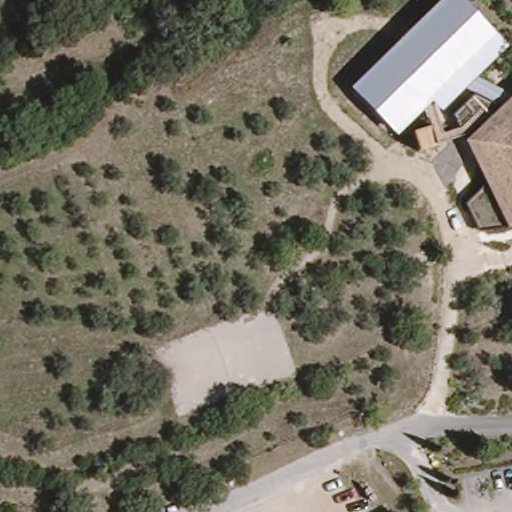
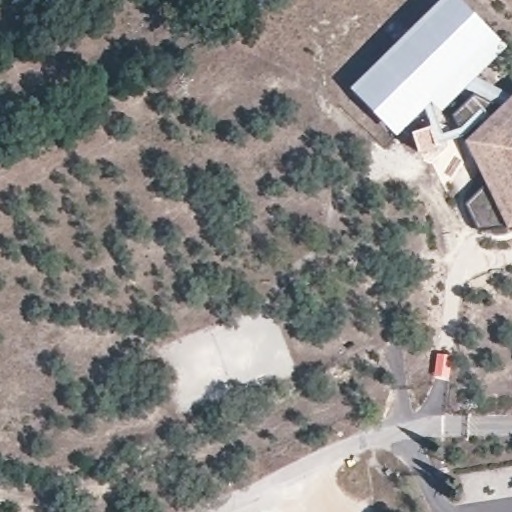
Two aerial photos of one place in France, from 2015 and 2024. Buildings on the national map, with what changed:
unchanged [(505,47),(434,114),(427,106),(395,139),(348,91),(437,0),(457,0),(505,47)]
unchanged [(471,142),(512,102),(512,225),(471,142)]
unchanged [(414,134),(428,130),(433,146),(419,150),(414,134)]

